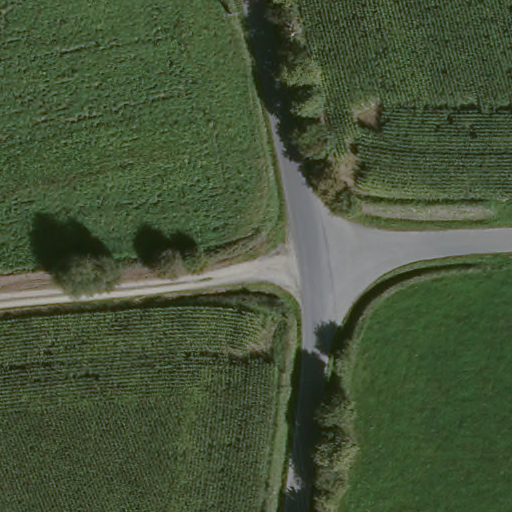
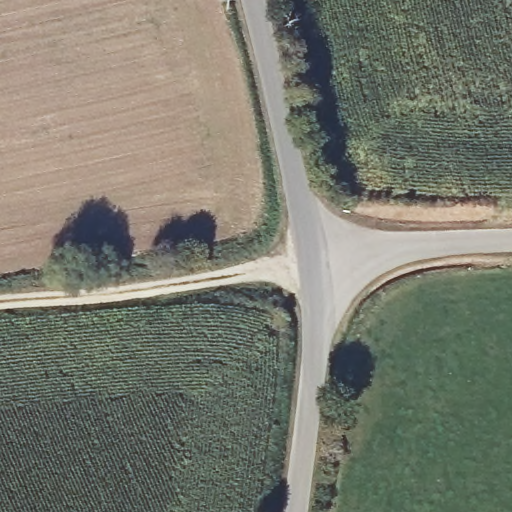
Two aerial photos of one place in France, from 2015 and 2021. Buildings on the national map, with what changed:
[]

